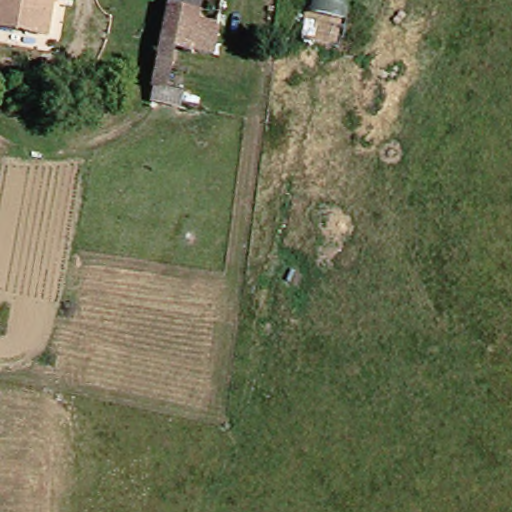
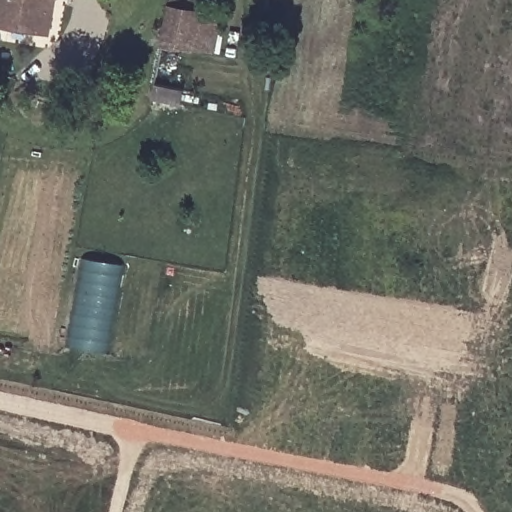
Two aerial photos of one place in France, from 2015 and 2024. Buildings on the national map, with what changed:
unchanged [(0,28),(0,0),(47,0),(40,37),(0,28)]
unchanged [(182,51),(150,44),(158,0),(213,0),(202,54),(182,51)]
unchanged [(182,51),(175,92),(141,84),(150,44),(182,51)]
new [(109,353),(68,347),(83,256),(127,264),(109,353)]

